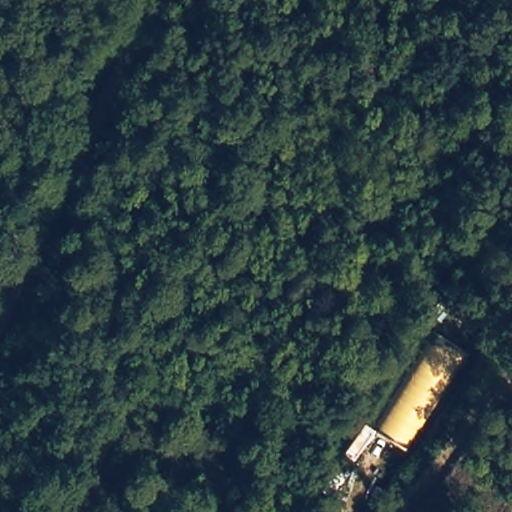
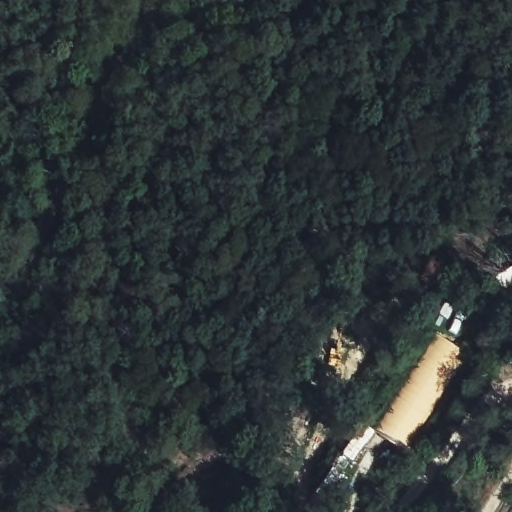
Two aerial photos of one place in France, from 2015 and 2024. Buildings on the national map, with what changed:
unchanged [(463,351),(402,448),(373,431),(350,460),(341,452),(363,422),(372,429),(435,332),(463,351)]

